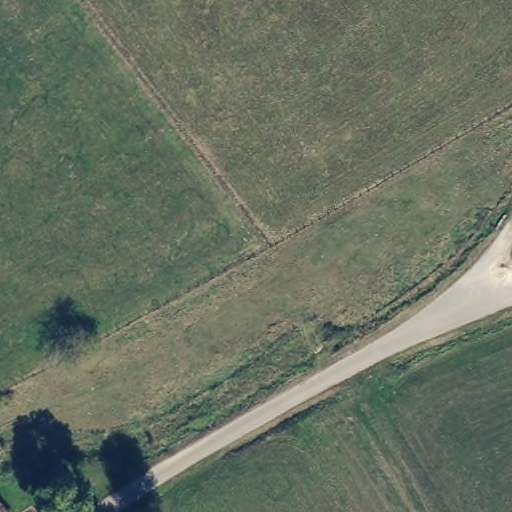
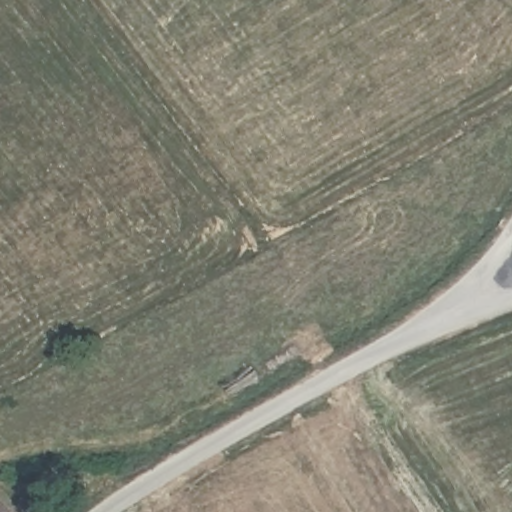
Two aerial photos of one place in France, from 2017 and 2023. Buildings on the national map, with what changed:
unchanged [(0,512),(0,506),(6,512),(0,512)]

